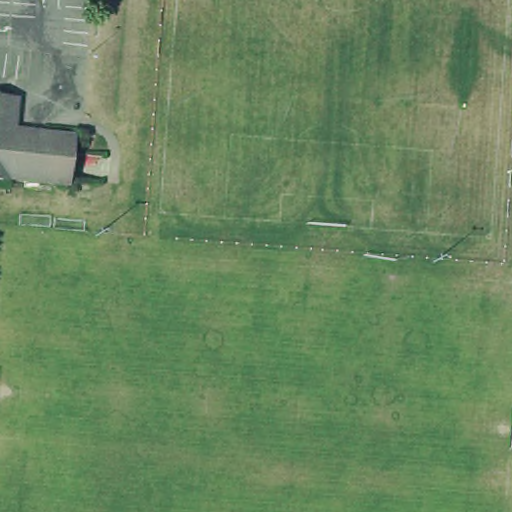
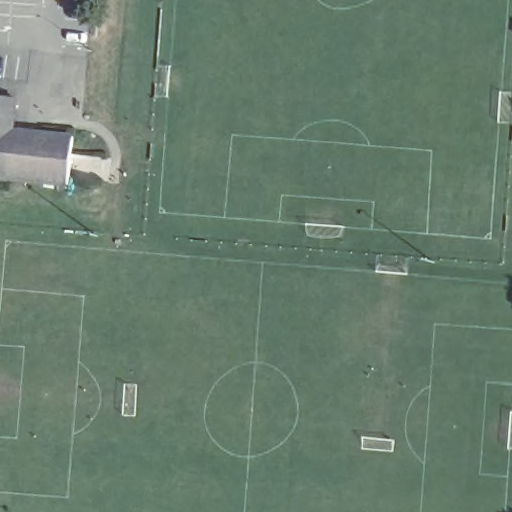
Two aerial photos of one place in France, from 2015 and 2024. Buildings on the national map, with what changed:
unchanged [(0,185),(0,102),(8,102),(5,135),(0,185)]
unchanged [(66,141),(61,191),(0,185),(5,135),(66,141)]

